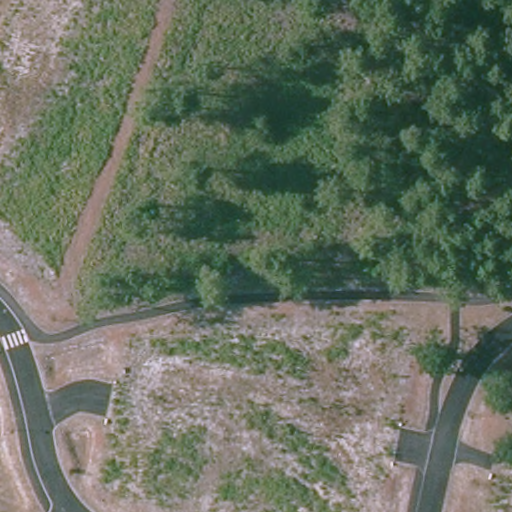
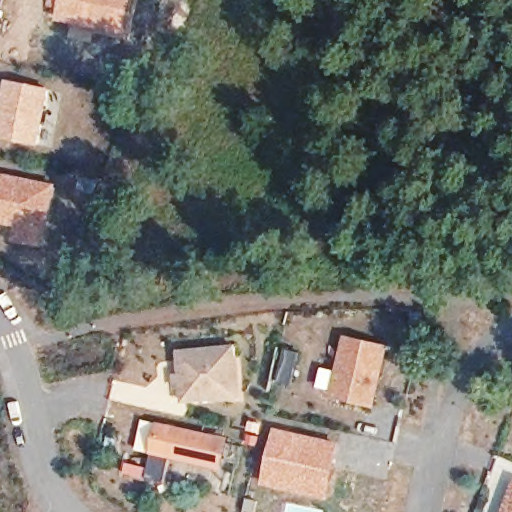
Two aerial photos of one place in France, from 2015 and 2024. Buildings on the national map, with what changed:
new [(133,0),(126,39),(52,20),(55,8),(45,6),(47,0),(133,0)]
new [(50,91),(37,145),(0,136),(0,120),(9,81),(50,91)]
new [(0,176),(53,186),(49,207),(42,244),(16,239),(19,224),(0,220),(0,176)]
new [(351,339),(391,348),(377,405),(337,396),(351,339)]
new [(277,346),(299,352),(290,387),(269,381),(277,346)]
new [(184,387),(179,387),(177,375),(183,374),(182,352),(237,348),(240,383),(241,397),(229,398),(205,400),(185,401),(184,387)]
new [(273,426),(340,442),(327,500),(258,484),(273,426)]
new [(180,431),(229,442),(224,465),(175,454),(180,431)]
new [(512,504),(512,512),(509,512),(512,504)]

